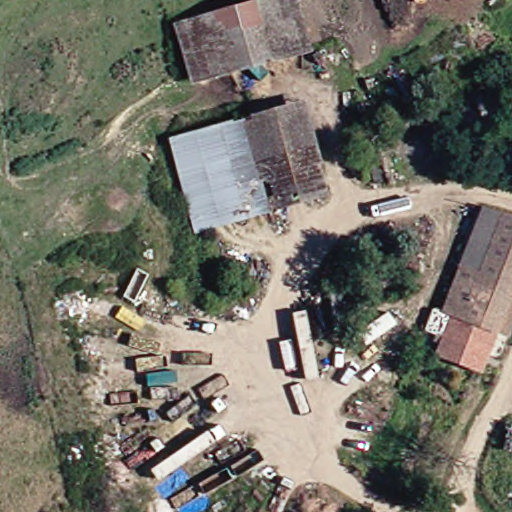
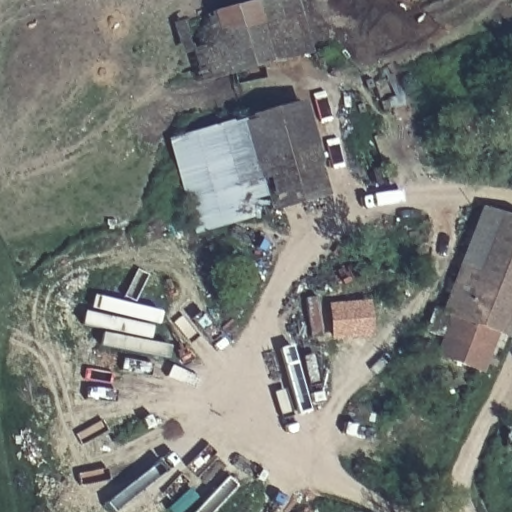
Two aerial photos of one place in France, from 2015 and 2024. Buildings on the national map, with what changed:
unchanged [(312,51),(208,81),(191,22),(257,4),(270,0),(298,0),(312,51)]
unchanged [(323,170),(330,195),(200,232),(175,141),(237,123),(308,103),(325,165),(322,166),(323,170)]
unchanged [(506,332),(498,355),(490,352),(444,333),(437,331),(445,311),(451,313),(492,207),(512,215),(512,334),(506,332)]
new [(371,338),(328,342),(326,305),(367,301),(371,338)]
unchanged [(490,352),(482,377),(434,356),(444,333),(490,352)]

